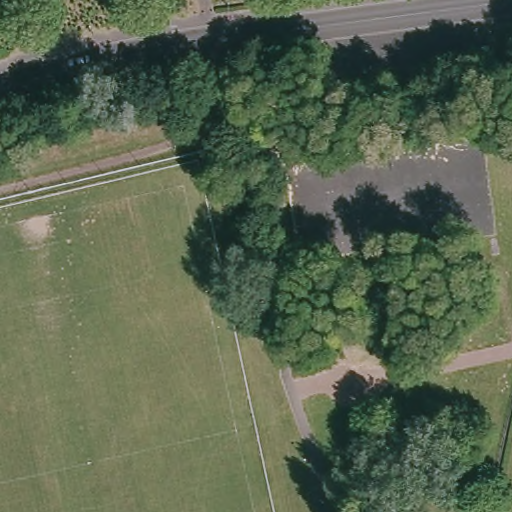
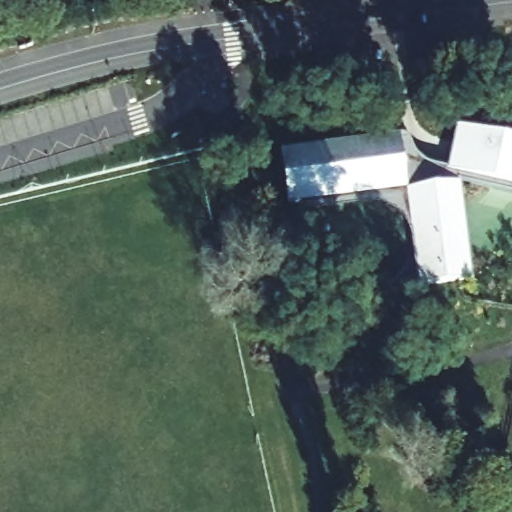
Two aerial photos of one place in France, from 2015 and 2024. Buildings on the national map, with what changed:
new [(455,127),(512,137),(512,189),(449,175),(455,127)]
new [(399,135),(407,189),(289,203),(285,149),(399,135)]
new [(460,180),(474,276),(419,283),(408,189),(460,180)]

